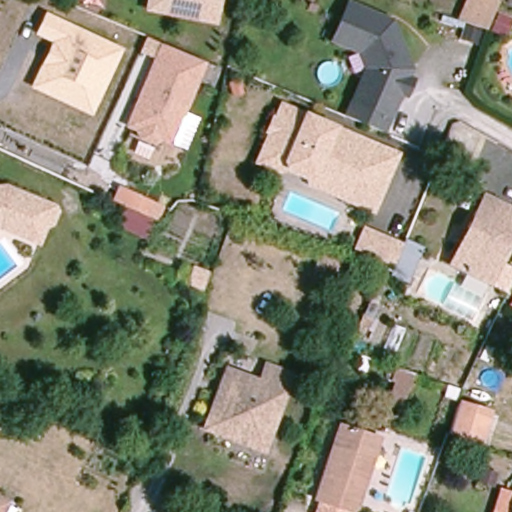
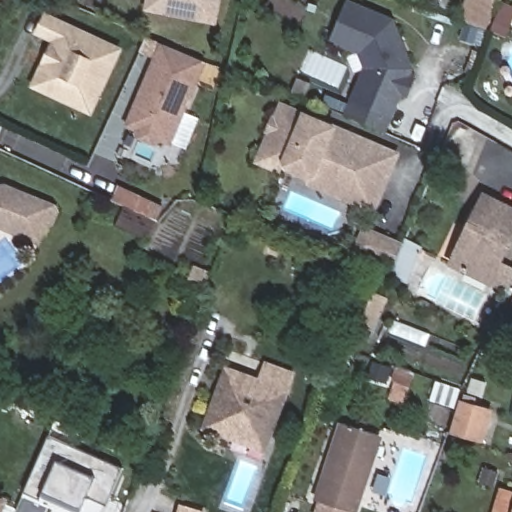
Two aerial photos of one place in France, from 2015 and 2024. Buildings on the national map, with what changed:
unchanged [(144,14),(147,0),(222,0),(217,24),(144,14)]
unchanged [(466,0),(497,0),(499,1),(487,29),(466,21),(457,19),(466,0)]
unchanged [(401,92),(391,116),(354,100),(367,68),(363,58),(361,52),(333,40),(349,3),(392,21),(411,69),(409,74),(407,77),(413,80),(407,95),(401,92)]
unchanged [(123,47),(90,117),(28,87),(51,41),(33,33),(44,11),(123,47)]
unchanged [(158,44),(206,64),(170,146),(122,125),(158,44)]
unchanged [(305,185),(306,179),(285,174),(278,177),(252,166),(278,103),(304,111),(337,125),(399,151),(371,214),(305,185)]
unchanged [(47,202),(43,211),(37,214),(29,230),(25,229),(0,218),(0,176),(45,195),(47,202)]
unchanged [(148,240),(120,228),(125,216),(120,214),(124,206),(109,200),(116,184),(164,205),(148,240)]
unchanged [(468,228),(478,208),(484,195),(490,197),(512,208),(512,238),(489,284),(455,267),(449,264),(468,228)]
unchanged [(419,245),(405,277),(390,270),(353,252),(362,228),(400,244),(403,237),(419,245)]
unchanged [(332,276),(319,270),(324,256),(338,262),(332,276)]
unchanged [(200,295),(184,289),(192,265),(207,271),(200,295)]
unchanged [(356,327),(369,299),(379,304),(371,320),(376,325),(369,333),(356,327)]
unchanged [(210,425),(215,409),(230,366),(264,378),(270,361),(295,370),(271,439),(269,446),(210,425)]
unchanged [(416,373),(404,405),(388,399),(394,382),(391,381),(397,366),(416,373)]
unchanged [(451,433),(460,400),(494,410),(484,443),(451,433)]
unchanged [(316,501),(342,423),(381,436),(356,512),(351,512),(316,501)]
new [(48,435),(122,468),(105,505),(87,497),(82,508),(43,492),(40,500),(23,492),(48,435)]
unchanged [(497,510),(502,491),(512,494),(512,512),(505,512),(497,510)]
unchanged [(0,510),(0,502),(3,503),(0,510)]

